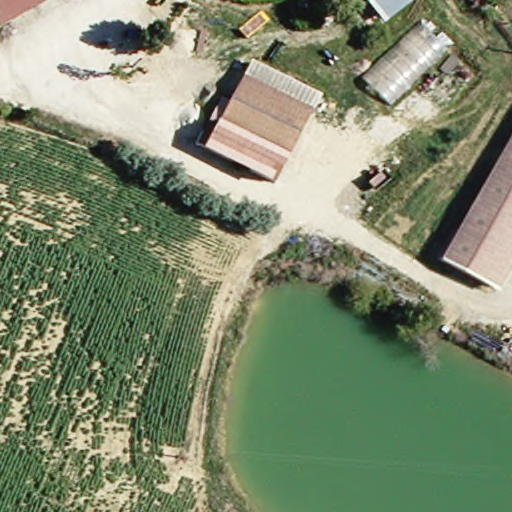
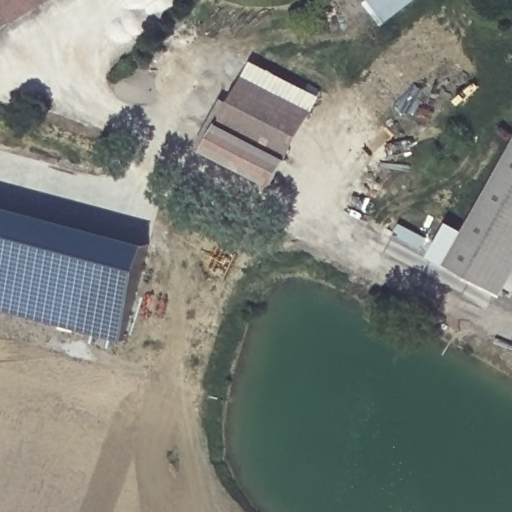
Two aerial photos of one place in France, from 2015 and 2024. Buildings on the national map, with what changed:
unchanged [(0,0),(1,0),(63,0),(15,29),(0,3),(0,0)]
unchanged [(373,3),(377,0),(423,0),(390,26),(373,3)]
unchanged [(0,38),(0,3),(15,29),(0,38)]
unchanged [(364,86),(446,3),(473,28),(390,113),(364,86)]
unchanged [(274,185),(206,149),(252,61),(321,98),(274,185)]
unchanged [(503,298),(444,266),(512,142),(512,281),(503,298)]
new [(142,252),(116,343),(0,310),(0,212),(3,213),(142,252)]

